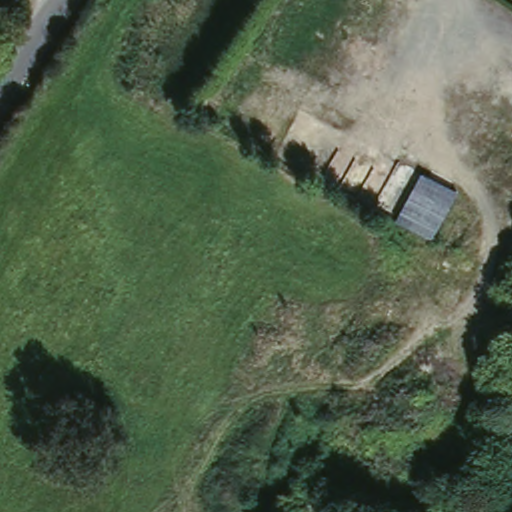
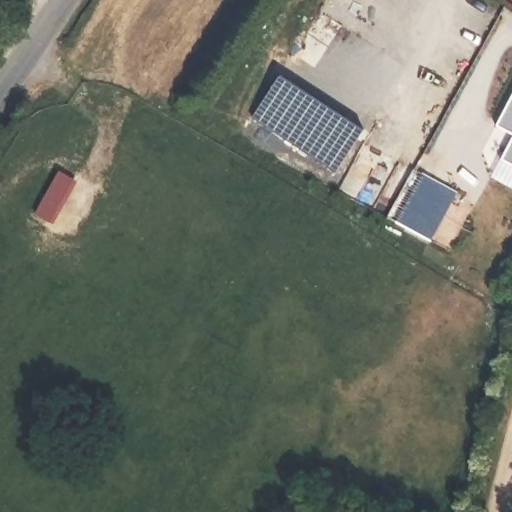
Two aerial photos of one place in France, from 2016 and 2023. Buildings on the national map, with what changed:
new [(278,77),(364,131),(337,174),(251,121),(278,77)]
new [(512,94),(512,136),(496,127),(512,94)]
new [(512,138),(512,190),(491,178),(512,138)]
unchanged [(460,194),(428,246),(396,224),(429,173),(460,194)]
unchanged [(494,366),(484,415),(460,408),(475,358),(494,366)]

